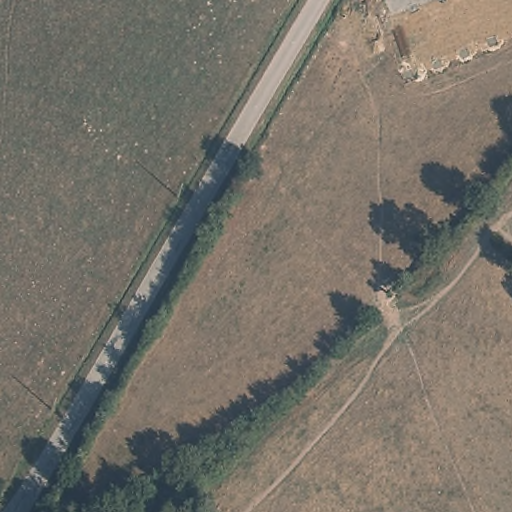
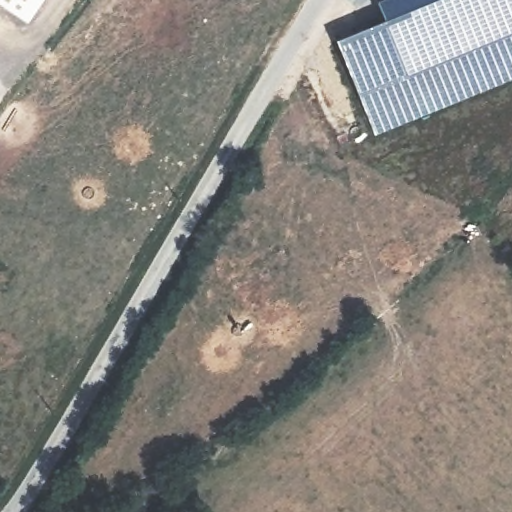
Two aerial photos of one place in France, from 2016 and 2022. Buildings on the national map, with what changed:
new [(335,38),(383,19),(376,0),(512,0),(512,79),(375,135),(335,38)]

